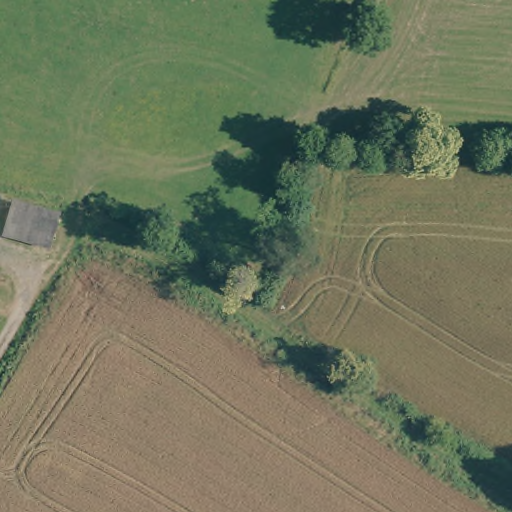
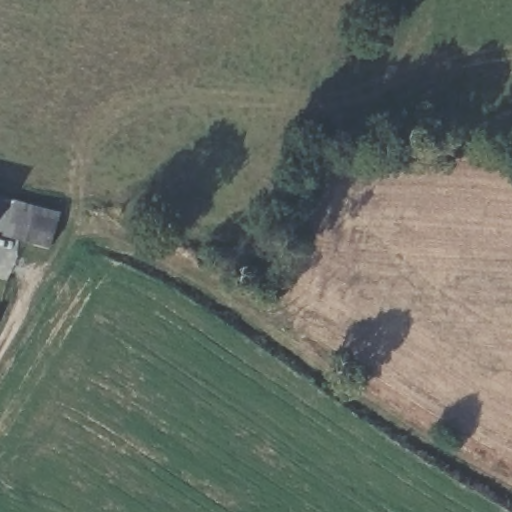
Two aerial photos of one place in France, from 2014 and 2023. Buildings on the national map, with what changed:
unchanged [(5,228),(16,196),(61,212),(55,225),(46,243),(11,230),(5,228)]
unchanged [(0,234),(0,198),(11,201),(1,234),(0,234)]

